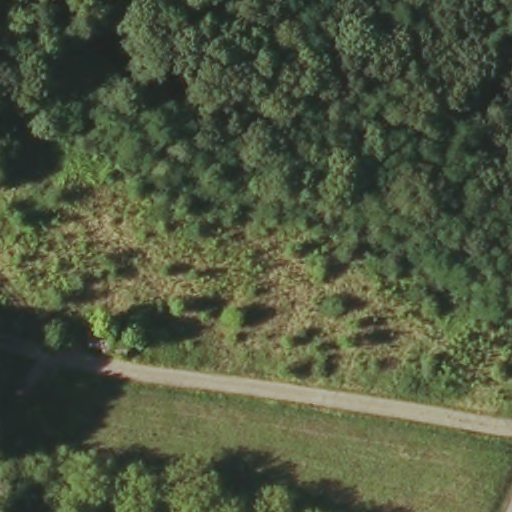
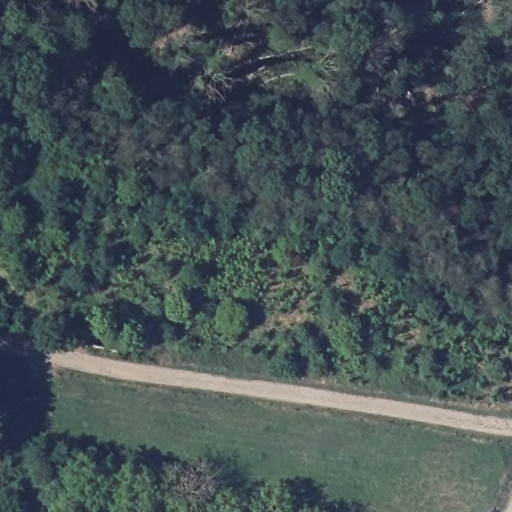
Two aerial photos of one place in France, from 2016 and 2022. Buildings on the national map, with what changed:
unchanged [(81,325),(114,332),(114,337),(133,341),(130,361),(76,349),(81,325)]

